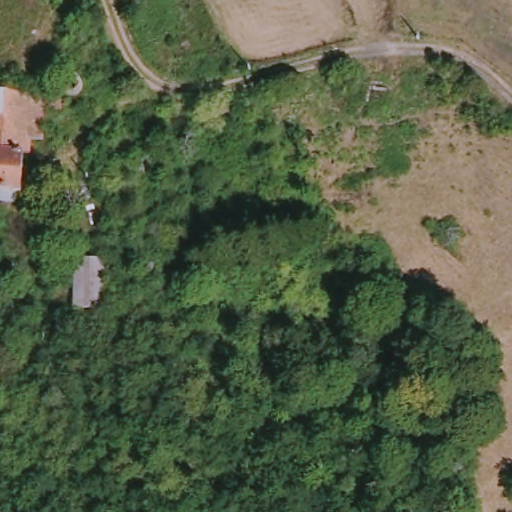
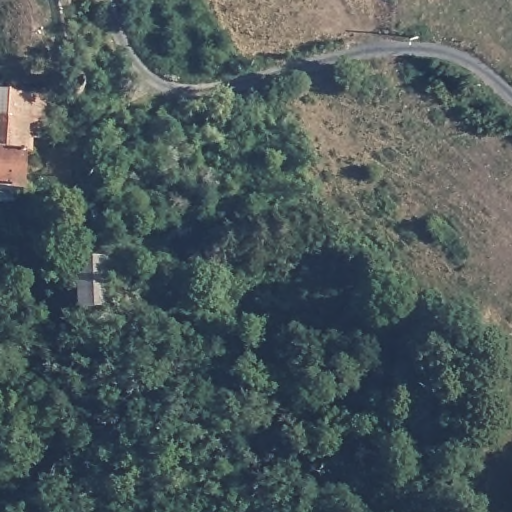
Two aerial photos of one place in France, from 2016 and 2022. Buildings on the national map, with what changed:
unchanged [(0,89),(34,91),(29,187),(0,186),(0,89)]
unchanged [(50,94),(49,144),(31,142),(34,91),(50,94)]
unchanged [(50,225),(53,207),(67,210),(64,229),(50,225)]
unchanged [(71,259),(106,259),(106,316),(73,311),(71,259)]

